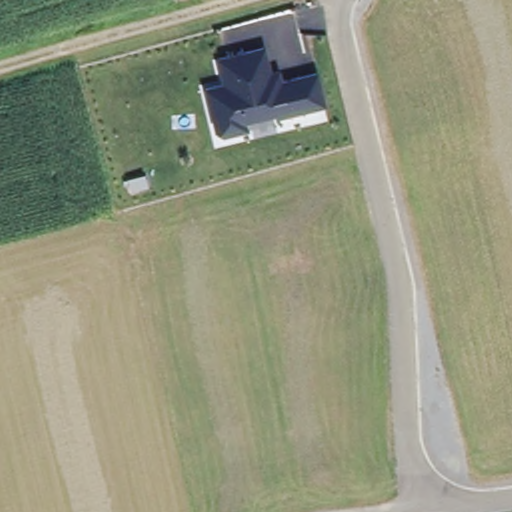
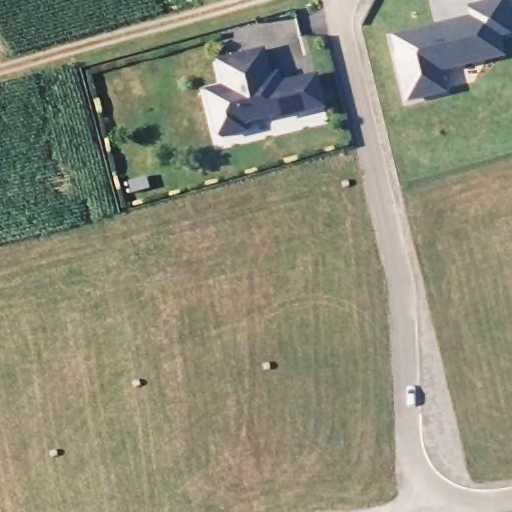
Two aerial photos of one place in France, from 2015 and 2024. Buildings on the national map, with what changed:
new [(505,50),(483,54),(441,63),(445,84),(408,91),(399,46),(402,46),(398,28),(459,16),(478,13),(476,2),(486,0),(512,0),(512,28),(501,30),(505,50)]
unchanged [(273,116),(272,112),(241,118),(243,127),(219,132),(213,128),(204,84),(223,80),(218,55),(239,51),(263,46),(268,71),(276,70),(278,81),(297,77),(314,74),(321,106),(303,110),(273,116)]

